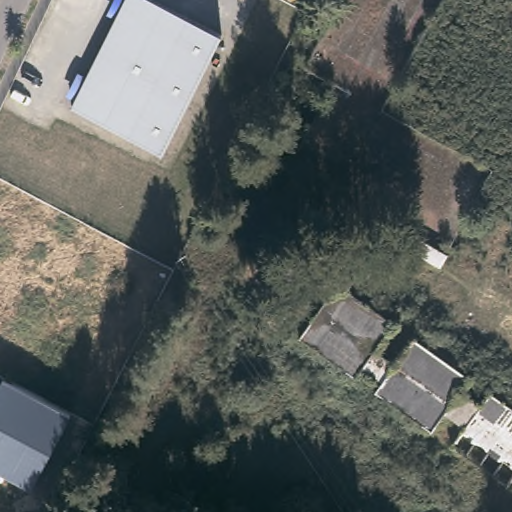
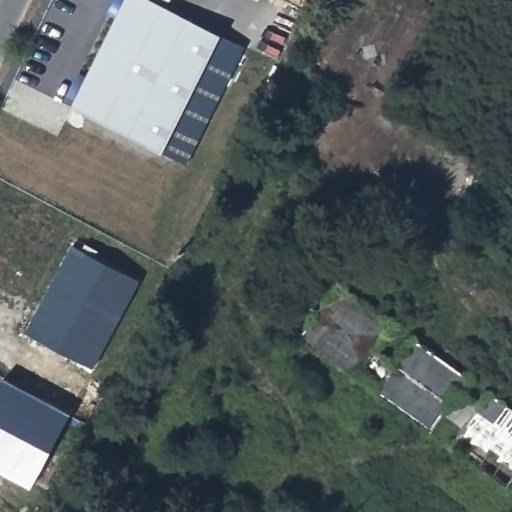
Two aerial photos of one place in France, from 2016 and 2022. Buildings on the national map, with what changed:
unchanged [(76,73),(83,77),(115,12),(109,9),(113,0),(157,0),(220,31),(160,149),(69,104),(75,93),(68,89),(76,73)]
new [(140,279),(94,368),(25,332),(73,242),(140,279)]
unchanged [(450,451),(462,432),(441,420),(431,437),(373,401),(377,393),(360,382),(355,388),(298,351),(335,292),(391,330),(375,360),(392,371),(410,343),(466,380),(458,395),(478,408),(488,392),(510,407),(477,468),(450,451)]
unchanged [(33,486),(0,468),(0,388),(5,377),(71,413),(33,486)]
unchanged [(477,468),(510,407),(512,409),(512,484),(508,489),(477,468)]

